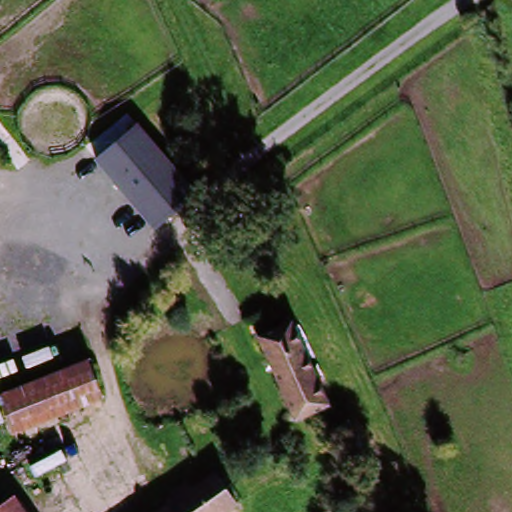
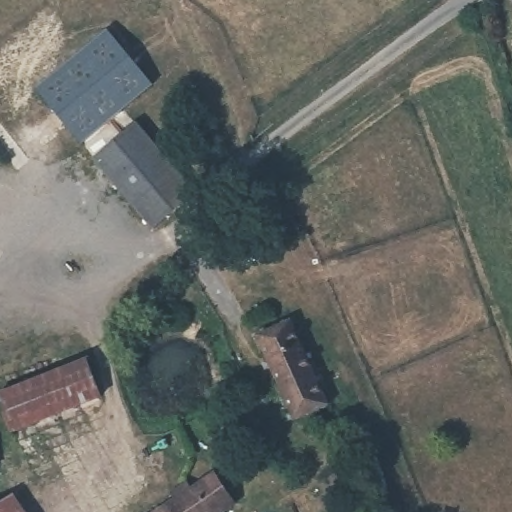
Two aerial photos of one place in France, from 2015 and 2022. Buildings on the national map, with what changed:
new [(154,85),(80,144),(35,89),(107,30),(154,85)]
unchanged [(137,123),(196,192),(153,234),(92,159),(137,123)]
unchanged [(326,399),(307,409),(294,416),(253,331),(286,315),(326,399)]
unchanged [(8,438),(0,413),(0,398),(87,368),(100,408),(8,438)]
unchanged [(168,512),(218,480),(238,512),(168,512)]
unchanged [(19,512),(4,512),(14,505),(19,512)]

